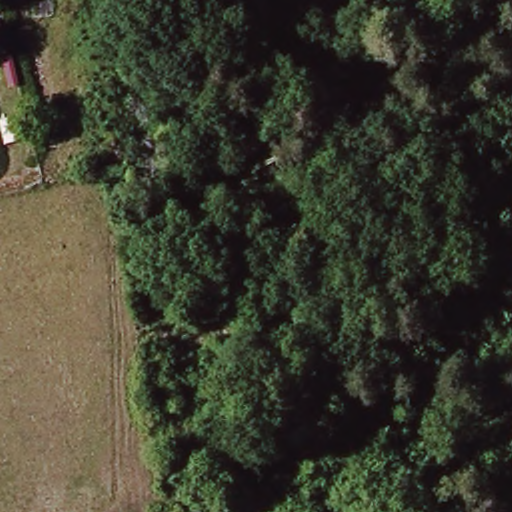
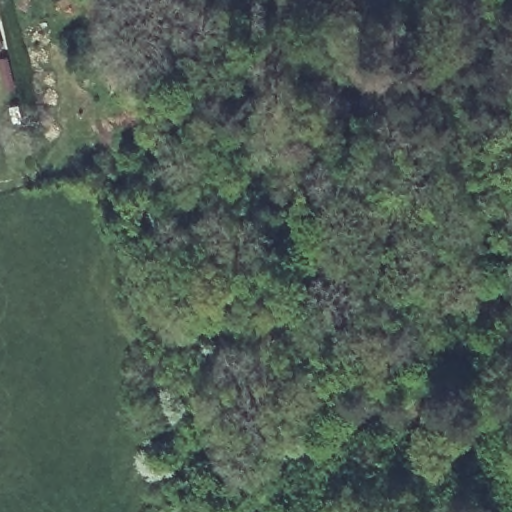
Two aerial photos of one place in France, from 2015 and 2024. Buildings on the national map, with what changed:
[]

